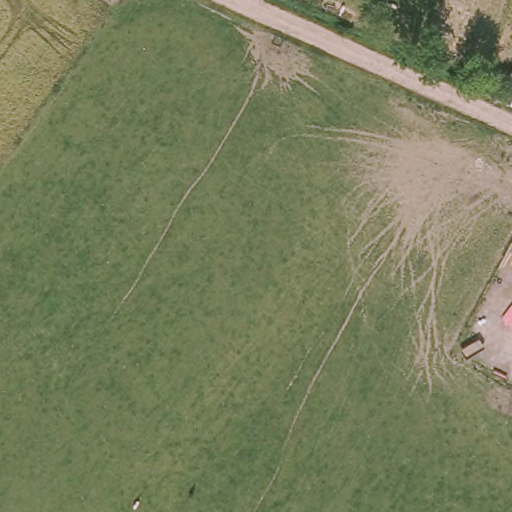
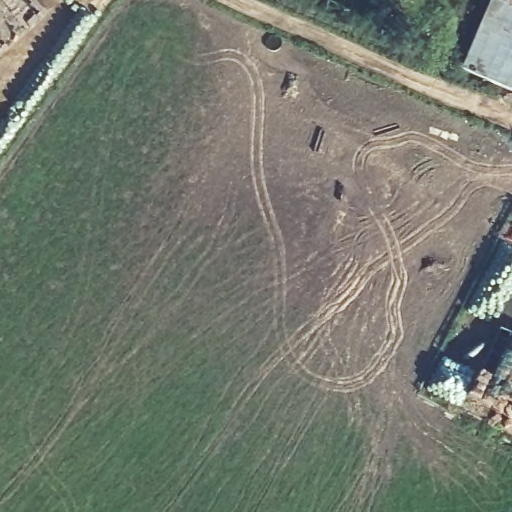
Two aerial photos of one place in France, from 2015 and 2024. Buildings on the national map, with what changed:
new [(490,0),(512,0),(512,68),(505,85),(461,69),(490,0)]
unchanged [(512,68),(512,87),(505,85),(512,68)]

